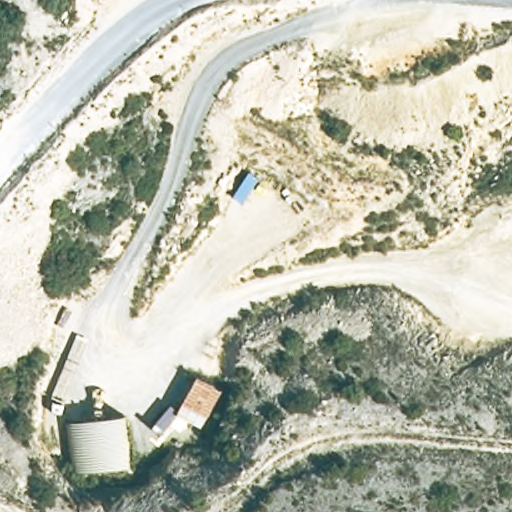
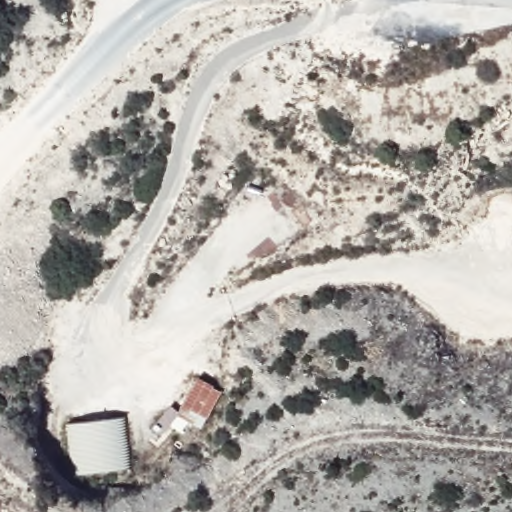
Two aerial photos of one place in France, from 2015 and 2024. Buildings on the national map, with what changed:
unchanged [(195,368),(225,386),(203,425),(173,407),(195,368)]
unchanged [(121,409),(126,466),(72,471),(66,416),(121,409)]

